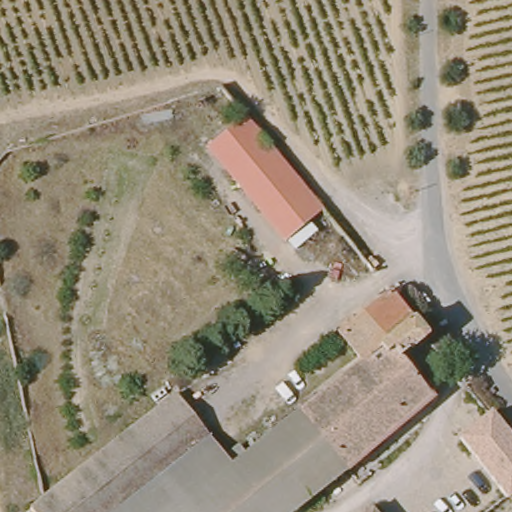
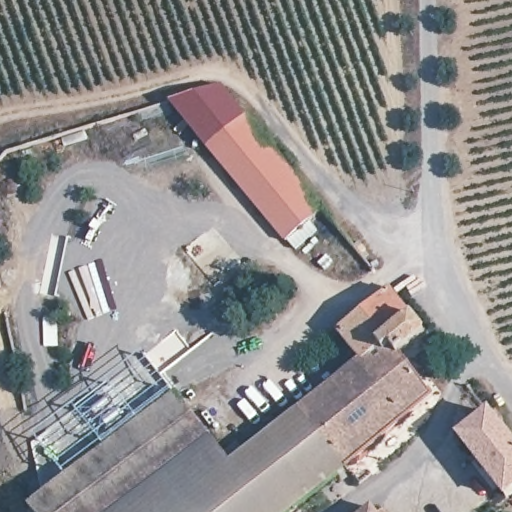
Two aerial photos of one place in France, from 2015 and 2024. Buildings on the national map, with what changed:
new [(221,85),(245,113),(207,145),(206,147),(170,103),(221,85)]
unchanged [(323,208),(286,241),(207,145),(245,113),(323,208)]
unchanged [(366,361),(342,332),(395,289),(431,334),(405,355),(438,396),(294,512),(277,512),(238,464),(366,361)]
unchanged [(181,393),(238,464),(277,512),(37,512),(35,509),(181,393)]
unchanged [(512,493),(465,433),(495,409),(512,429),(512,493)]
unchanged [(373,509),(375,512),(369,512),(373,509)]

